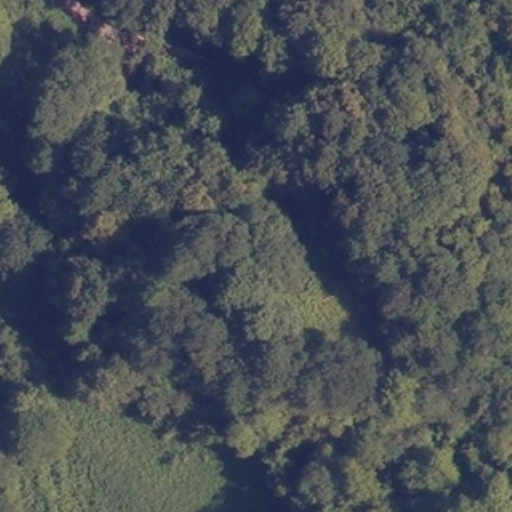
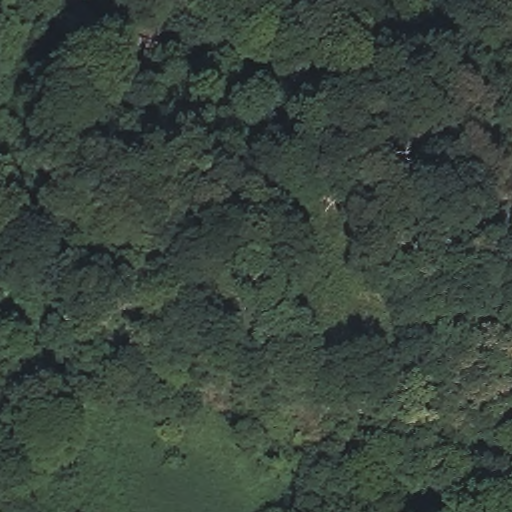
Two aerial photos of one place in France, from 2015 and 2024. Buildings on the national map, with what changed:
unchanged [(393,486),(469,469),(478,512),(398,512),(393,486)]

